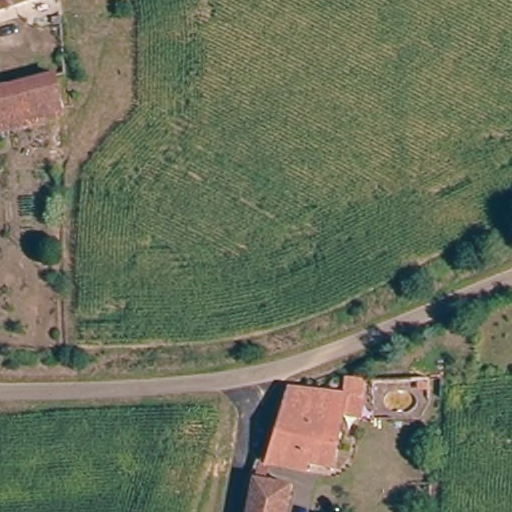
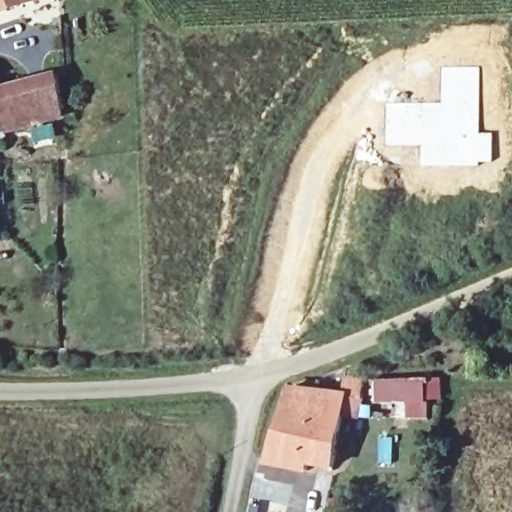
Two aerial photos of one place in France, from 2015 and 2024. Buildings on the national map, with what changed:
unchanged [(20,0),(0,7),(0,0),(20,0)]
new [(440,101),(440,65),(480,66),(481,132),(494,132),(493,163),(464,166),(420,166),(421,145),(386,145),(385,101),(440,101)]
unchanged [(57,83),(68,121),(0,139),(0,97),(57,83)]
unchanged [(348,391),(331,465),(310,462),(308,467),(263,456),(281,385),(348,391)]
demolished [(250,476),(288,478),(284,512),(244,512),(250,476)]

